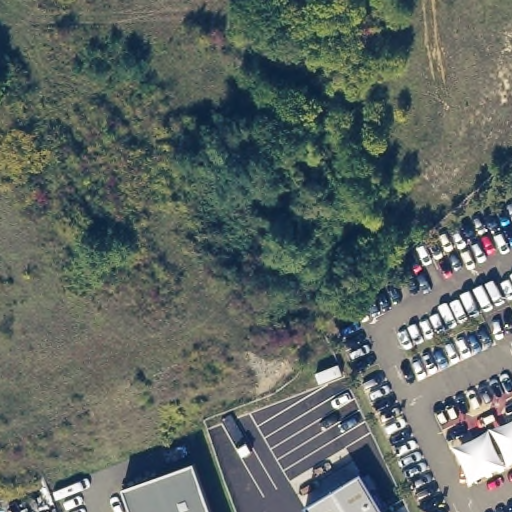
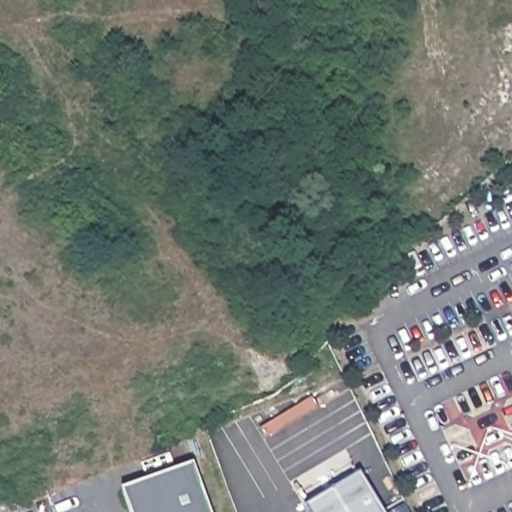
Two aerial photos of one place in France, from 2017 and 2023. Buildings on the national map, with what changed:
unchanged [(123,490),(194,464),(211,512),(130,512),(123,490)]
unchanged [(384,512),(308,512),(305,507),(361,474),(384,512)]

